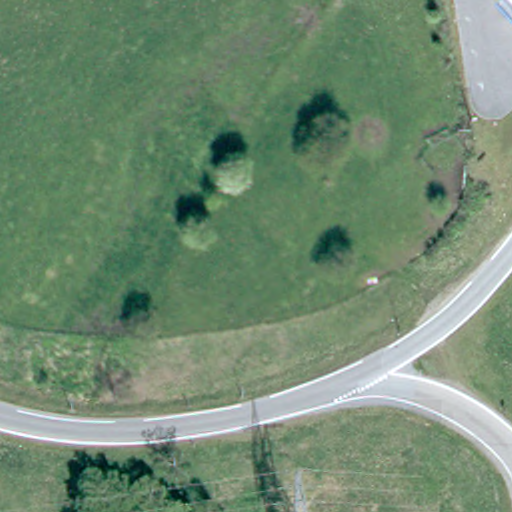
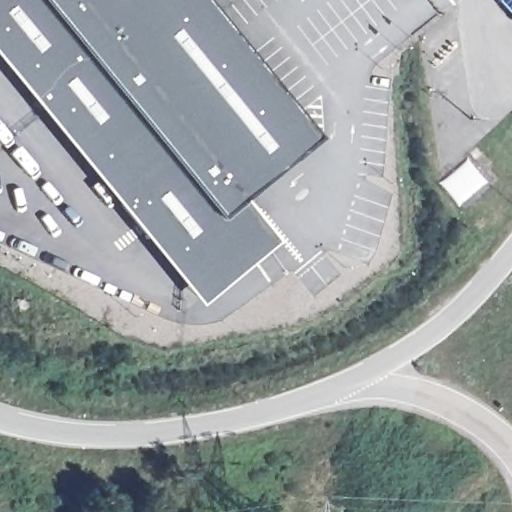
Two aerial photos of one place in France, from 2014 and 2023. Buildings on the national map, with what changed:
new [(0,62),(0,0),(39,0),(219,219),(244,198),(279,241),(201,305),(0,62)]
new [(244,198),(219,219),(39,0),(203,0),(317,138),(244,198)]
new [(512,0),(512,12),(501,0),(512,0)]

